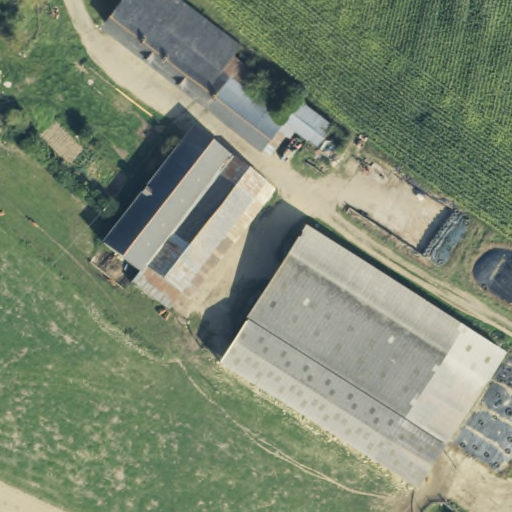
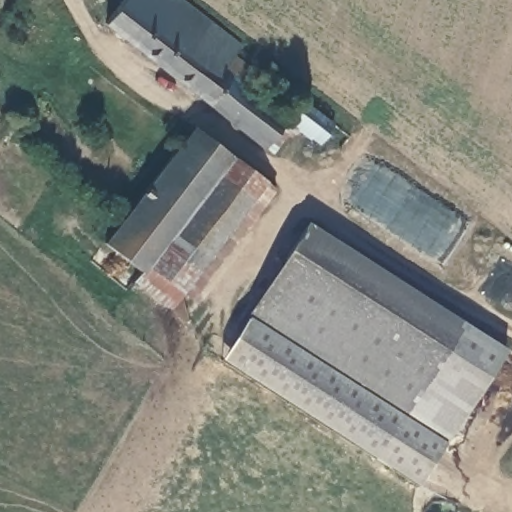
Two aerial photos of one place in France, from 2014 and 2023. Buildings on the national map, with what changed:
unchanged [(238,48),(232,56),(256,75),(246,89),(284,119),(262,148),(104,26),(124,0),(177,0),(238,48)]
unchanged [(301,101),(332,126),(318,144),(287,119),(301,101)]
unchanged [(13,106),(20,112),(20,121),(15,127),(6,127),(0,122),(0,112),(4,106),(13,106)]
unchanged [(109,250),(116,241),(189,145),(226,173),(146,278),(109,250)]
unchanged [(234,162),(268,188),(172,313),(140,288),(146,278),(226,173),(234,162)]
unchanged [(375,461),(221,363),(305,229),(460,327),(375,461)]
unchanged [(505,355),(420,489),(375,461),(460,327),(505,355)]

